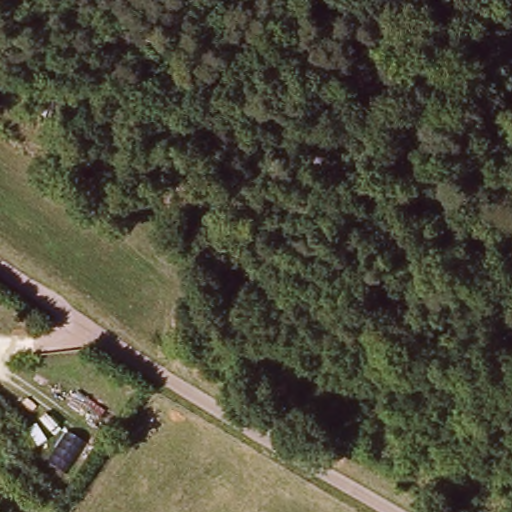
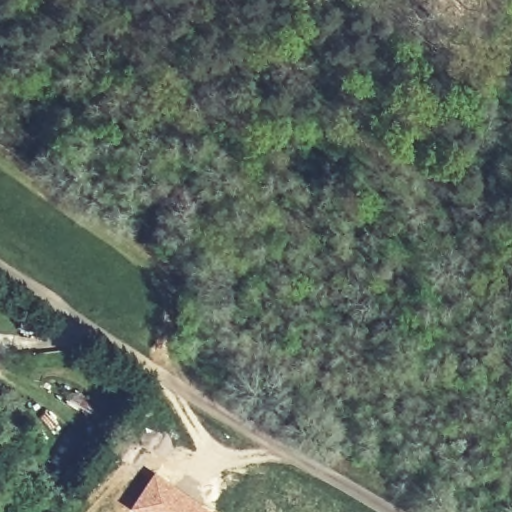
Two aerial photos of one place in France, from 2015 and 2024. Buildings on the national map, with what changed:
new [(216,509),(214,512),(130,512),(127,510),(155,470),(216,509)]

